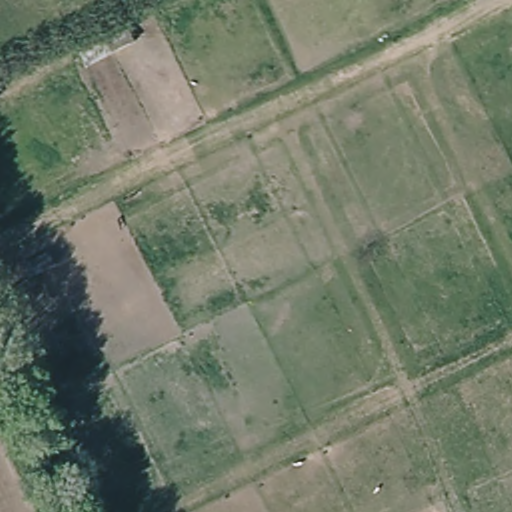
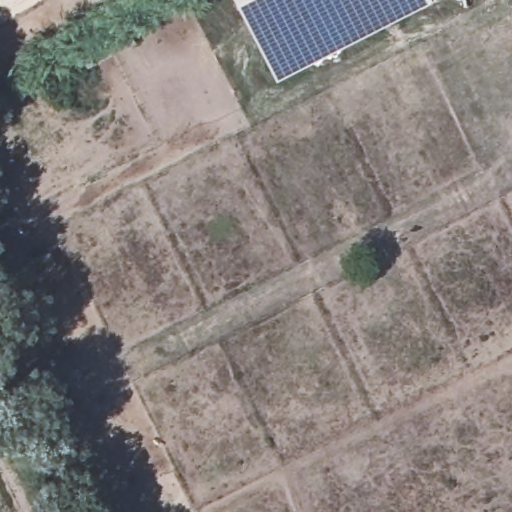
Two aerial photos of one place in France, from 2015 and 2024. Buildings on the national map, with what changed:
new [(433,2),(276,81),(235,0),(432,0),(433,2)]

